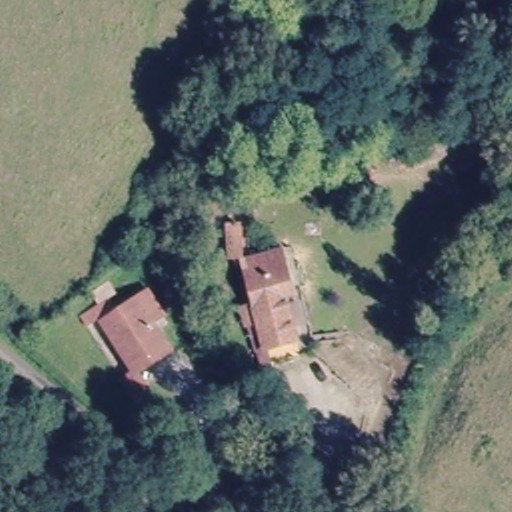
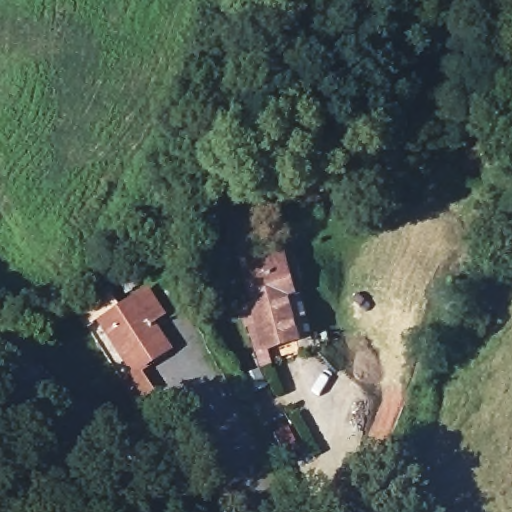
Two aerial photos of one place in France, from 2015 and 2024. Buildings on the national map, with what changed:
unchanged [(246,277),(246,274),(244,255),(245,255),(283,252),(285,271),(286,274),(288,299),(280,300),(283,324),(284,335),(266,336),(265,337),(255,337),(254,320),(249,320),(243,321),(241,303),(247,302),(249,302),(246,277)]
unchanged [(140,372),(151,394),(133,407),(118,379),(129,372),(96,322),(135,293),(176,350),(140,372)]

